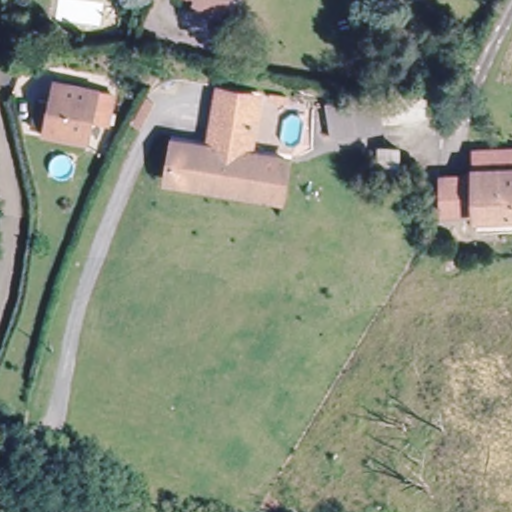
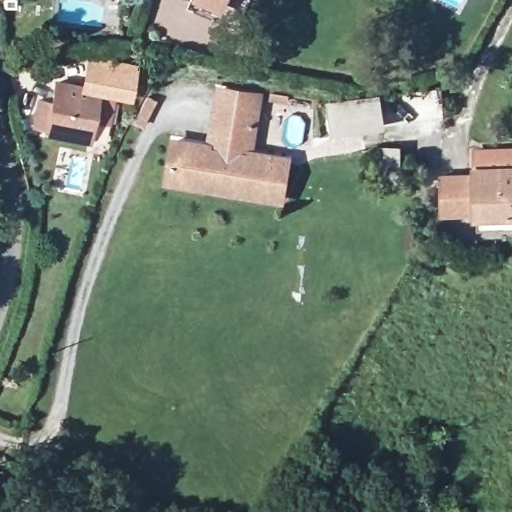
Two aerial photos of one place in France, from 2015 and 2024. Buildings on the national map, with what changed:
unchanged [(232,13),(218,8),(200,0),(238,0),(232,13)]
new [(138,65),(132,102),(107,96),(80,90),(87,54),(138,65)]
unchanged [(50,83),(107,96),(101,123),(86,119),(81,141),(25,128),(31,103),(45,107),(50,83)]
unchanged [(388,130),(334,138),(329,105),(380,94),(388,130)]
unchanged [(175,148),(210,154),(219,96),(258,102),(250,156),(286,163),(280,202),(242,195),(245,182),(208,176),(205,192),(168,186),(175,148)]
unchanged [(473,231),(472,211),(440,212),(439,171),(512,171),(512,229),(473,231)]

